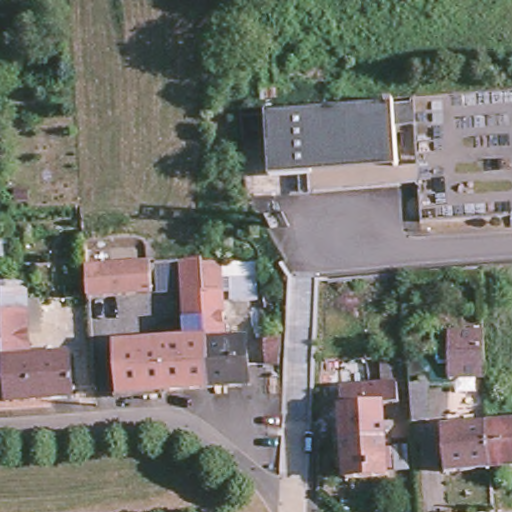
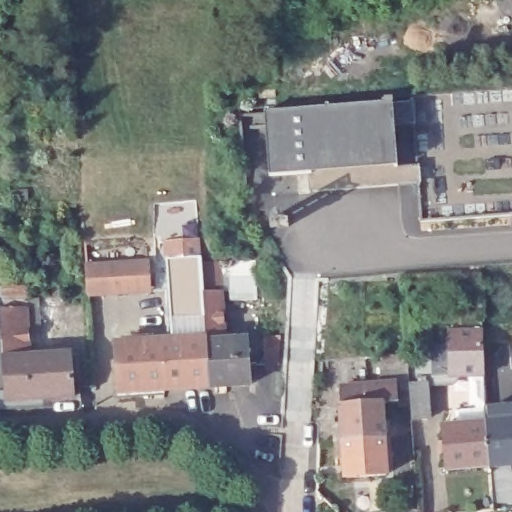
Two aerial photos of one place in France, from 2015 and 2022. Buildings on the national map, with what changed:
unchanged [(419,182),(398,184),(398,185),(309,190),(308,172),(269,175),(264,110),(385,102),(384,98),(392,97),(392,101),(411,100),(412,122),(394,123),(397,162),(418,161),(419,182)]
unchanged [(186,340),(180,259),(201,258),(201,263),(218,262),(256,260),(259,296),(226,299),(228,314),(221,311),(223,341),(246,340),(249,385),(208,388),(119,395),(116,345),(186,340)]
unchanged [(149,261),(151,291),(88,295),(86,295),(84,265),(85,265),(149,261)]
unchanged [(0,359),(0,290),(33,288),(33,290),(48,289),(50,311),(34,312),(35,322),(23,323),(25,357),(0,359)]
unchanged [(279,352),(265,353),(263,326),(280,325),(279,352)]
unchanged [(444,372),(444,340),(443,326),(478,325),(479,371),(446,372),(444,372)]
unchanged [(359,380),(364,380),(376,379),(374,353),(403,351),(403,355),(404,385),(422,383),(423,415),(407,415),(406,397),(394,398),(377,400),(376,400),(378,433),(338,436),(335,401),(334,382),(359,380)]
unchanged [(25,357),(65,355),(68,397),(1,401),(0,390),(0,359),(25,357)]
unchanged [(512,466),(490,467),(487,425),(512,422),(512,466)]
unchanged [(490,467),(446,471),(442,428),(486,425),(487,425),(490,467)]
unchanged [(378,433),(381,470),(341,473),(338,436),(378,433)]

